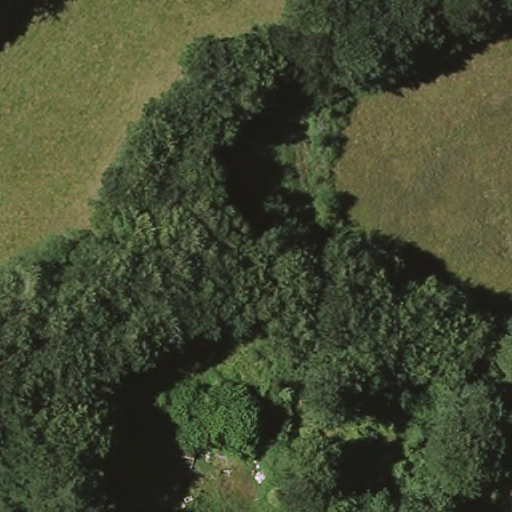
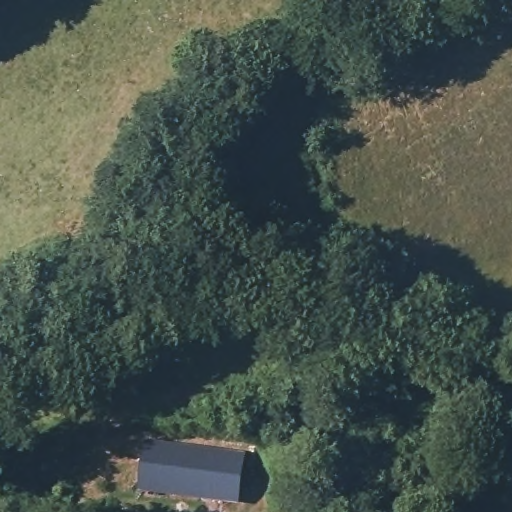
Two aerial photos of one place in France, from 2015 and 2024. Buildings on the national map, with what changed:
new [(141,489),(148,442),(242,454),(238,500),(141,489)]

